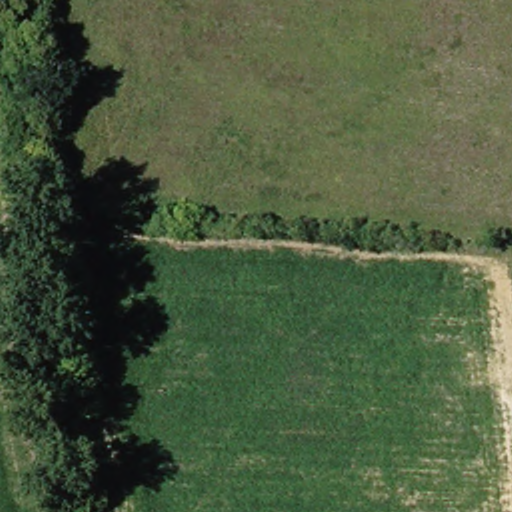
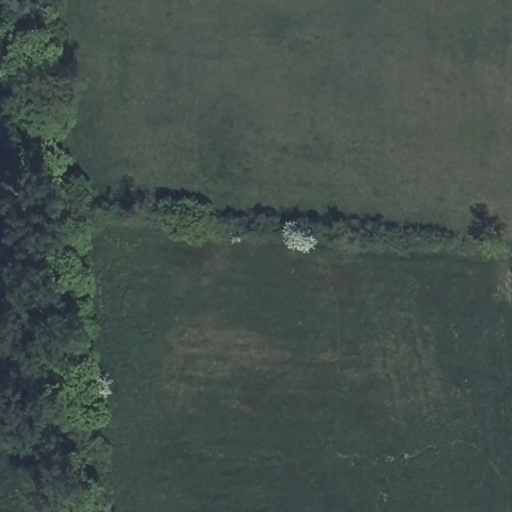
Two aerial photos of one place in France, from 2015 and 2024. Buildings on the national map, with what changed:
[]

